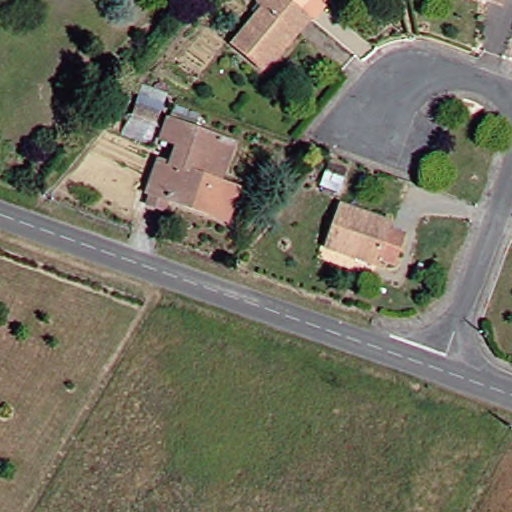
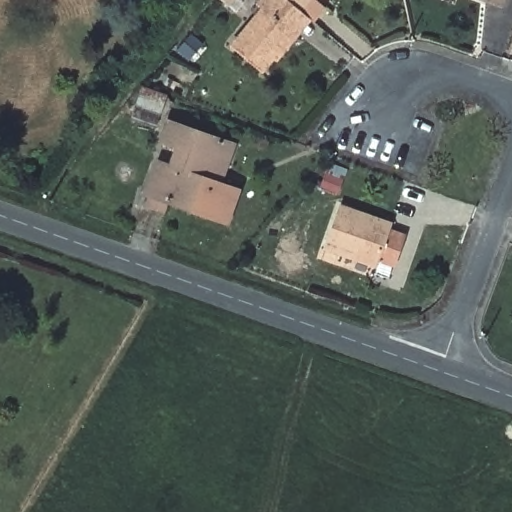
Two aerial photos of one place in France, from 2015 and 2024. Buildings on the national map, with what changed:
unchanged [(254,8),(261,0),(266,0),(290,0),(323,0),(326,3),(312,19),(310,16),(299,28),(267,65),(239,43),(262,15),(254,8)]
unchanged [(498,0),(509,0),(507,4),(498,0)]
unchanged [(190,95),(184,112),(160,105),(165,86),(190,95)]
unchanged [(244,169),(230,164),(221,189),(245,197),(234,224),(167,200),(179,165),(185,167),(191,150),(178,145),(187,121),(252,146),(244,169)]
unchanged [(393,220),(390,227),(411,235),(400,266),(380,258),(377,265),(330,247),(345,203),(393,220)]

